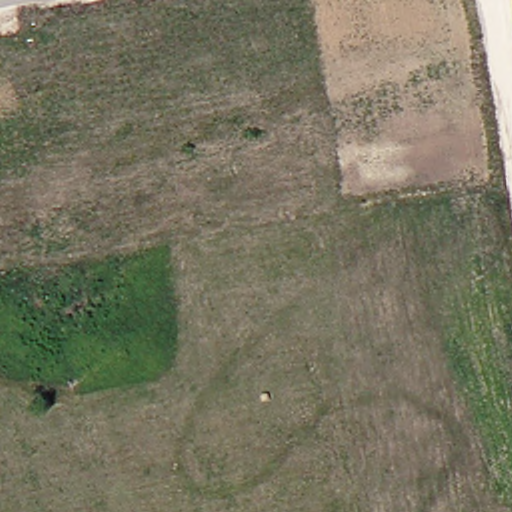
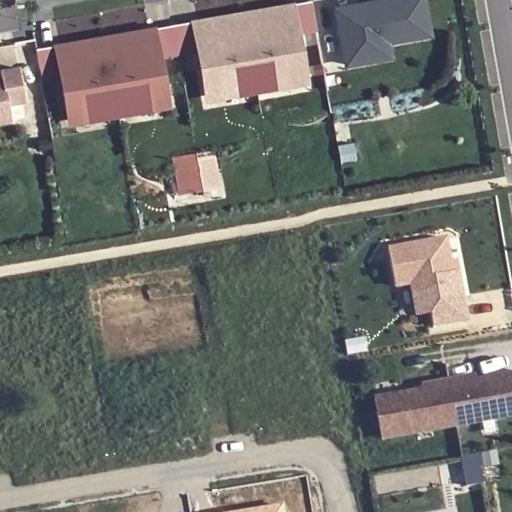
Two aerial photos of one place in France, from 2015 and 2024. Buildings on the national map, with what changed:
new [(347,65),(338,10),(395,0),(424,0),(431,36),(389,43),(392,57),(367,62),(347,65)]
new [(307,85),(202,103),(189,20),(294,3),(307,85)]
new [(170,109),(64,126),(51,44),(156,26),(170,109)]
new [(3,72),(22,70),(27,102),(11,105),(14,121),(0,124),(0,80),(4,79),(3,72)]
new [(216,155),(222,190),(181,196),(174,158),(196,154),(197,159),(216,155)]
new [(454,261),(460,260),(462,271),(471,320),(437,326),(433,306),(423,308),(419,283),(398,286),(392,249),(450,238),(454,261)]
new [(420,387),(420,383),(474,374),(475,376),(512,370),(512,420),(381,442),(372,396),(420,387)]
new [(284,512),(230,512),(283,503),(284,512)]

